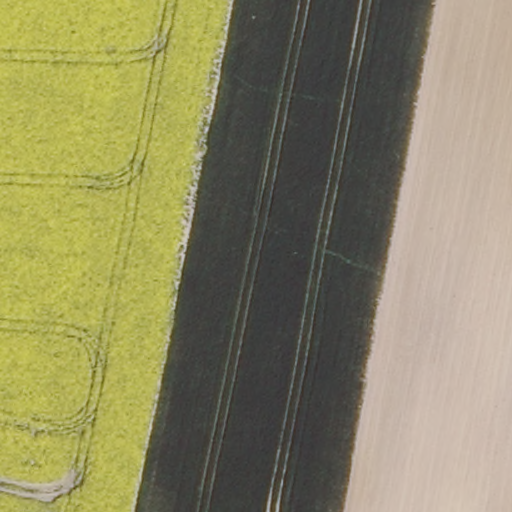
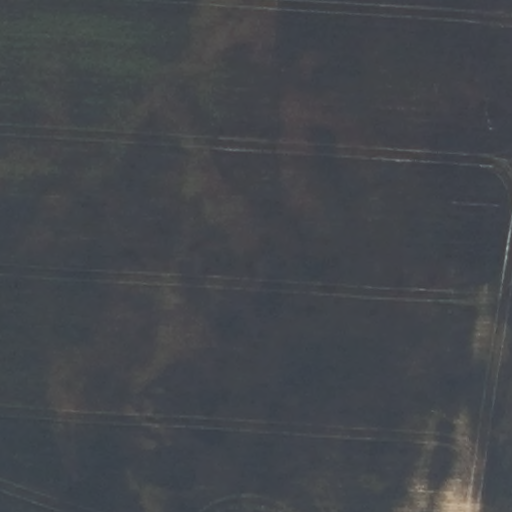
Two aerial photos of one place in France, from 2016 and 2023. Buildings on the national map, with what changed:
[]

